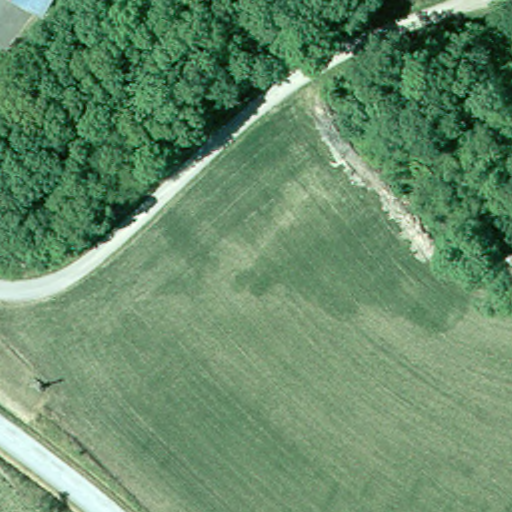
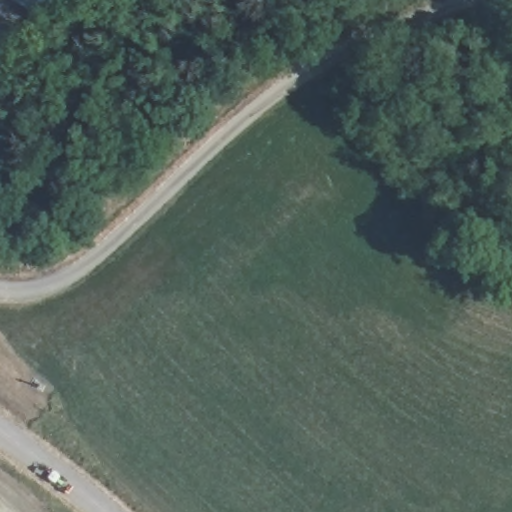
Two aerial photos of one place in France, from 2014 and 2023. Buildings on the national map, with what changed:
unchanged [(0,3),(0,0),(54,0),(24,28),(0,3)]

